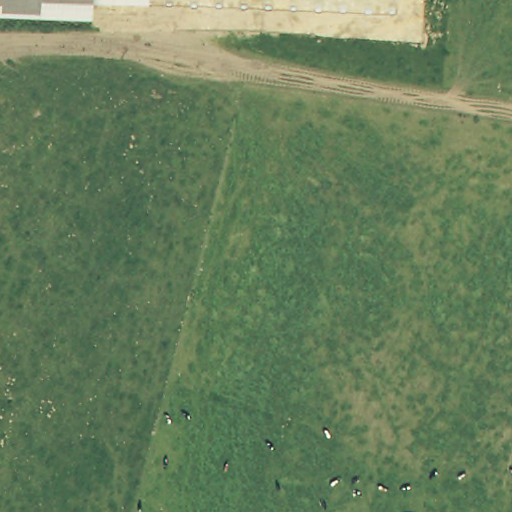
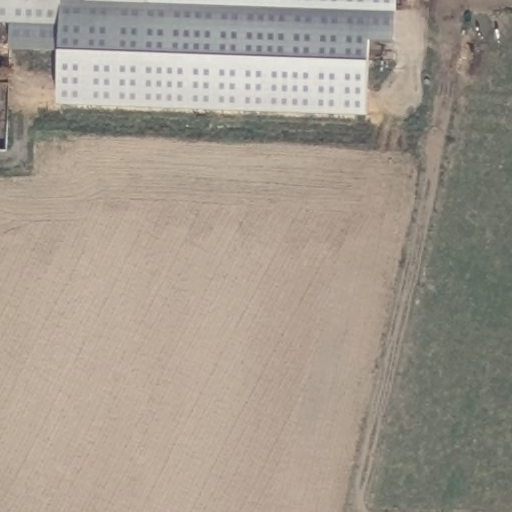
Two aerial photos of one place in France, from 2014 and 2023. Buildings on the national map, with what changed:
unchanged [(0,7),(0,0),(87,0),(87,10),(0,7)]
new [(86,29),(87,10),(87,4),(145,6),(146,0),(395,0),(394,36),(86,29)]
unchanged [(146,0),(145,6),(87,4),(87,0),(146,0)]
new [(366,116),(56,106),(60,52),(9,50),(9,24),(0,24),(0,7),(87,10),(86,29),(366,36),(366,116)]

